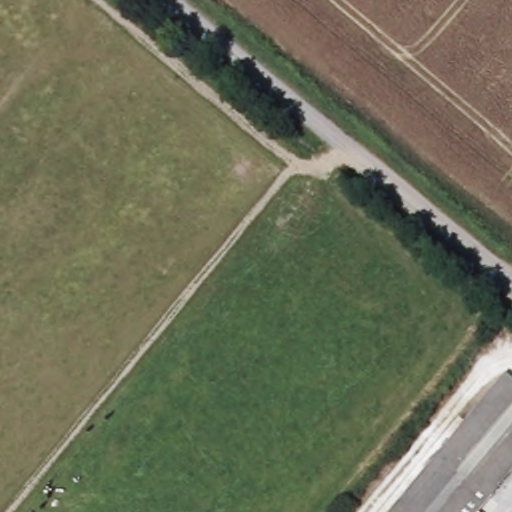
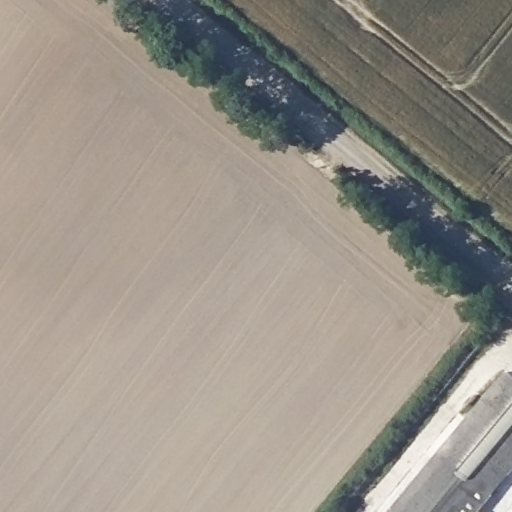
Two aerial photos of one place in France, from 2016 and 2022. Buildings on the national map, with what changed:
unchanged [(512,372),(512,468),(475,512),(394,512),(512,372)]

